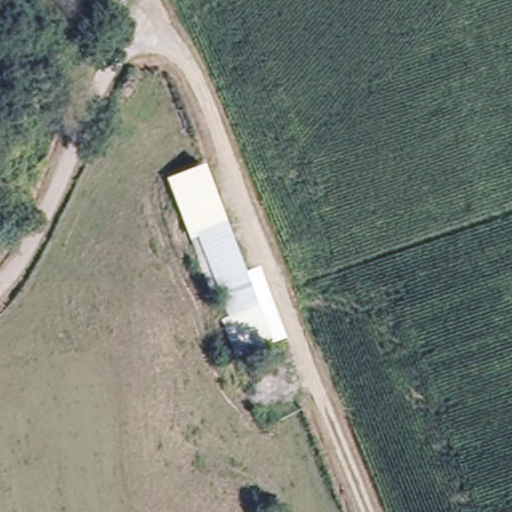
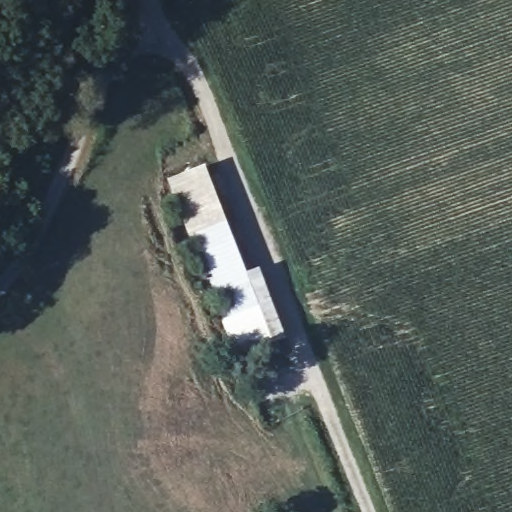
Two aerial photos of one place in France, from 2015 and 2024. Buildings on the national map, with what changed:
unchanged [(276,345),(237,360),(167,179),(206,163),(276,345)]

